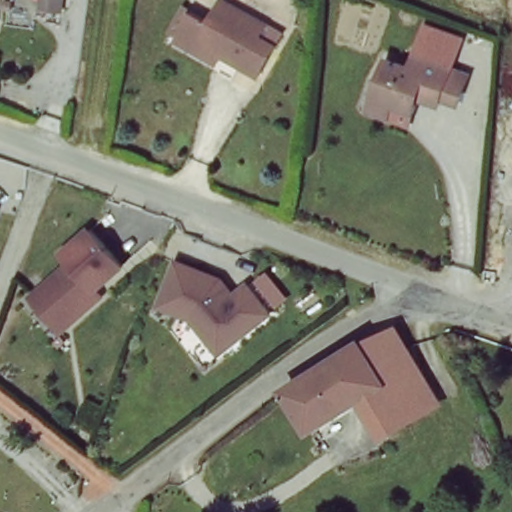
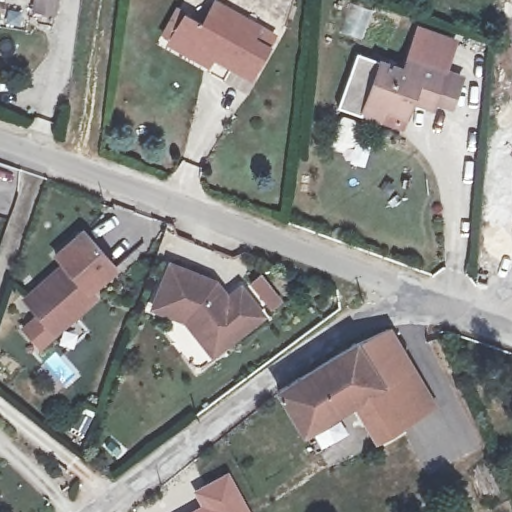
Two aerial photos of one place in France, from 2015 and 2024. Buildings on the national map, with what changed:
unchanged [(36,0),(58,0),(57,11),(35,8),(36,0)]
unchanged [(201,25),(214,4),(258,28),(274,37),(267,49),(251,78),(214,58),(209,66),(168,46),(186,15),(201,25)]
unchanged [(364,116),(370,103),(384,65),(405,74),(410,61),(465,83),(454,109),(437,103),(435,111),(414,104),(409,118),(389,110),(384,124),(364,116)]
unchanged [(69,271),(62,262),(88,239),(120,274),(91,301),(94,305),(59,336),(33,303),(69,271)]
unchanged [(211,347),(196,325),(161,310),(180,270),(222,288),(233,301),(246,291),(267,318),(236,341),(218,358),(211,347)]
unchanged [(419,383),(420,391),(430,407),(372,436),(353,403),(319,426),(311,429),(300,410),(297,403),(292,396),(369,345),(395,334),(419,383)]
new [(200,505),(193,490),(229,470),(252,512),(187,512),(200,505)]

